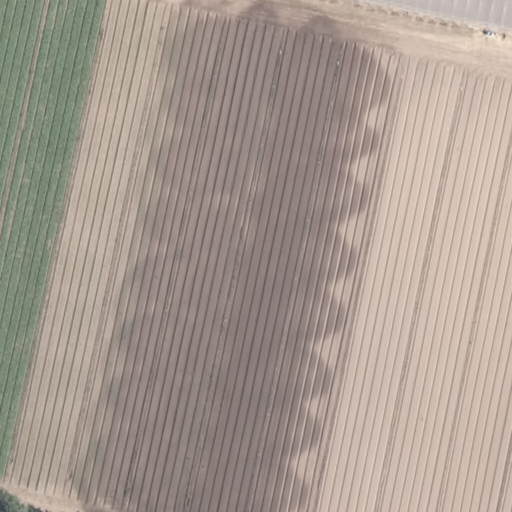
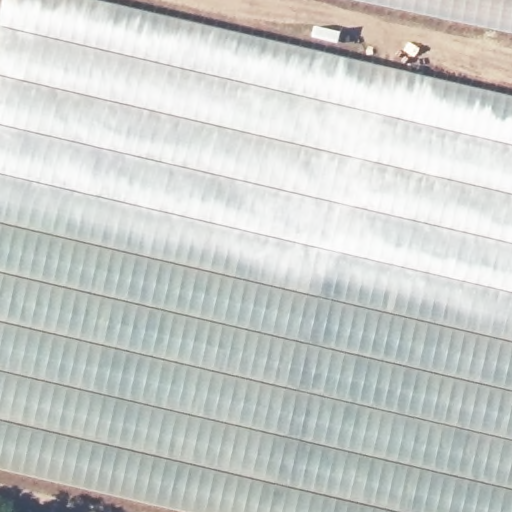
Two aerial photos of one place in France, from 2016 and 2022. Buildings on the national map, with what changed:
new [(3,0),(101,0),(512,95),(512,512),(187,512),(0,469),(0,13),(3,0)]
unchanged [(512,31),(362,0),(512,0),(512,31)]

